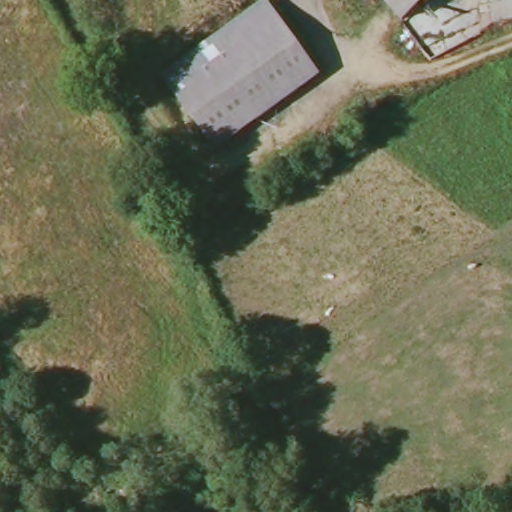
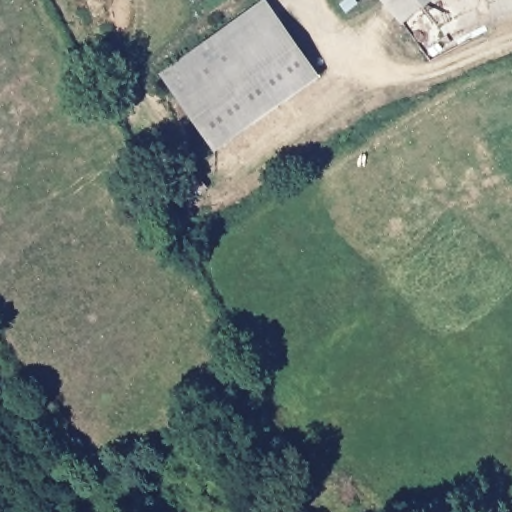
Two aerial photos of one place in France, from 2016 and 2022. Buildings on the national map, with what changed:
unchanged [(210,142),(161,66),(264,0),(267,0),(314,75),(210,142)]
unchanged [(398,24),(377,0),(412,0),(417,6),(398,24)]
unchanged [(412,0),(423,0),(417,6),(412,0)]

